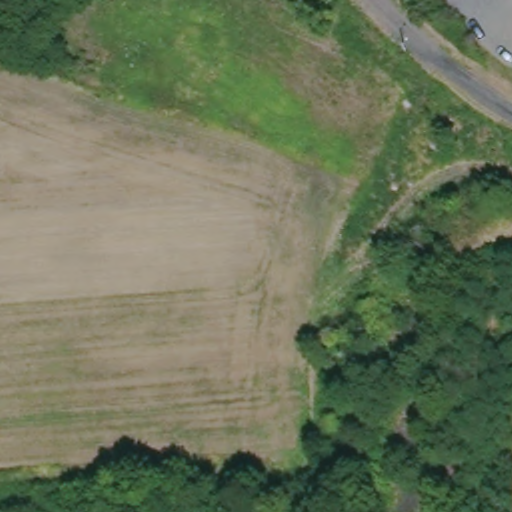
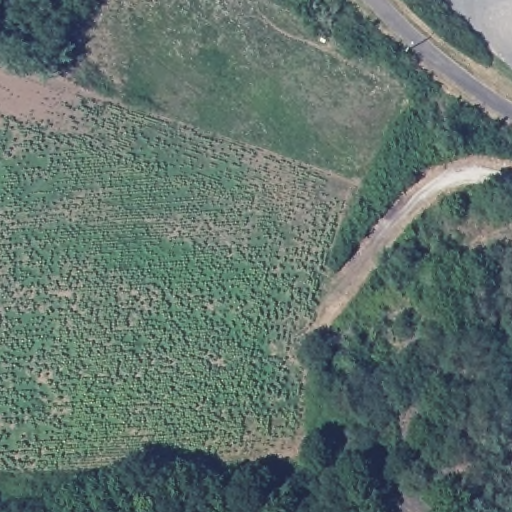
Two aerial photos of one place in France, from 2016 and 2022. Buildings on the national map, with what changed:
[]

